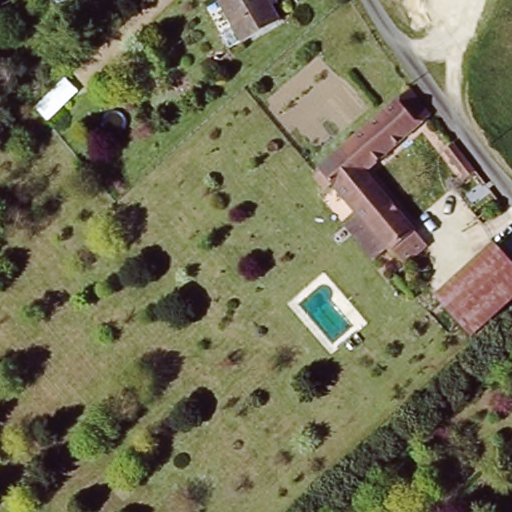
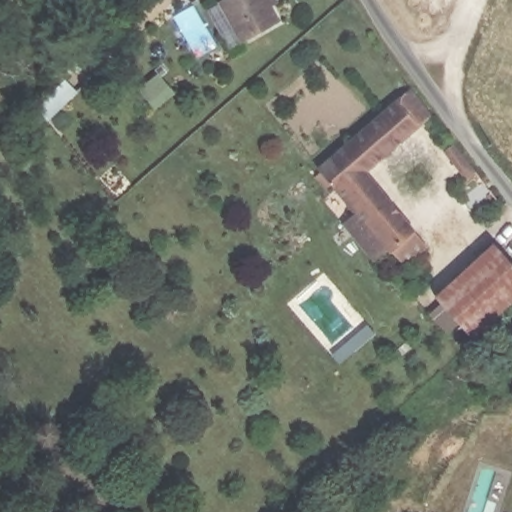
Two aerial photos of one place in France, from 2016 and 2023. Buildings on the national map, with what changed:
unchanged [(226,0),(268,0),(280,20),(242,42),(220,3),(226,0)]
unchanged [(405,262),(397,252),(395,249),(389,253),(382,244),(375,249),(344,213),(351,207),(338,193),(344,188),(355,177),(334,154),(417,84),(447,126),(440,131),(431,119),(367,169),(419,235),(427,244),(405,262)]
unchanged [(470,187),(448,158),(460,149),(481,179),(470,187)]
unchanged [(414,312),(505,236),(512,245),(512,303),(452,353),(414,312)]

